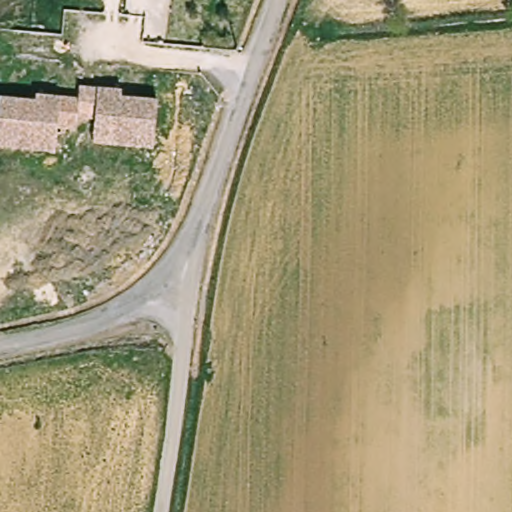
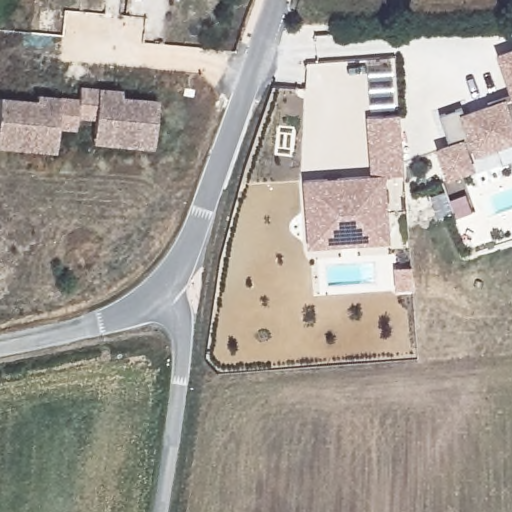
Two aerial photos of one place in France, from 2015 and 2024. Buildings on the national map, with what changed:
new [(501,50),(512,46),(512,83),(501,50)]
new [(465,109),(490,102),(489,95),(512,88),(512,137),(478,149),(477,145),(468,148),(473,164),(449,172),(440,145),(473,134),(465,109)]
unchanged [(37,159),(0,153),(6,104),(43,110),(43,104),(86,109),(87,97),(129,103),(128,109),(165,114),(160,152),(121,146),(120,158),(98,154),(99,144),(100,130),(83,127),(81,140),(62,136),(60,150),(60,161),(37,159)]
new [(372,170),(368,111),(401,109),(405,169),(385,171),(388,217),(310,223),(307,175),(372,170)]
new [(388,217),(390,237),(312,243),(310,223),(388,217)]

